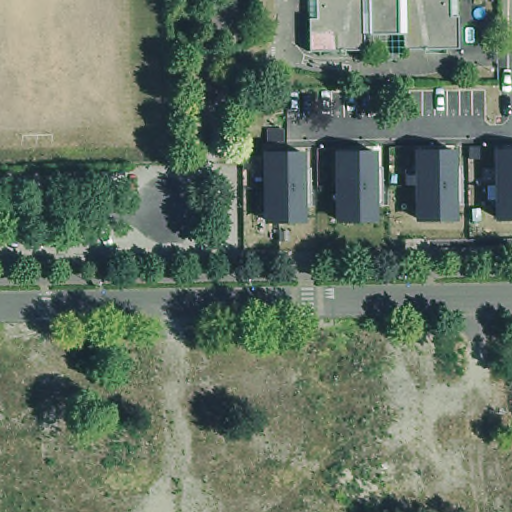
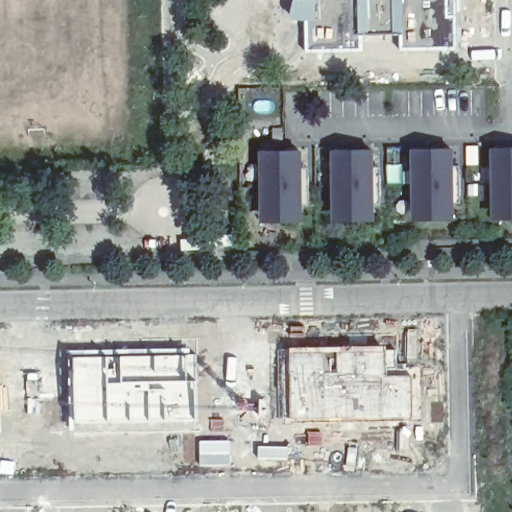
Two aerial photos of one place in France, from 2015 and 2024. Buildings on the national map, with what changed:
unchanged [(307,46),(307,30),(307,0),(456,0),(456,28),(457,45),(402,45),(402,29),(362,30),(362,46),(307,46)]
unchanged [(456,148),(455,167),(461,167),(461,204),(455,206),(456,220),(412,219),(412,149),(456,148)]
unchanged [(512,219),(492,218),(493,149),(512,148),(512,219)]
unchanged [(375,149),(375,167),(382,166),(380,205),(375,206),(375,220),(333,221),(331,151),(375,149)]
unchanged [(303,150),(303,168),(309,167),(310,206),(303,207),(303,222),(262,222),(260,152),(303,150)]
new [(289,347),(388,344),(389,368),(412,369),(413,419),(369,419),(289,417),(289,347)]
new [(182,347),(182,351),(195,351),(195,393),(192,393),(195,419),(130,422),(72,422),(69,349),(182,347)]
new [(198,439),(230,439),(230,464),(198,464),(198,439)]

